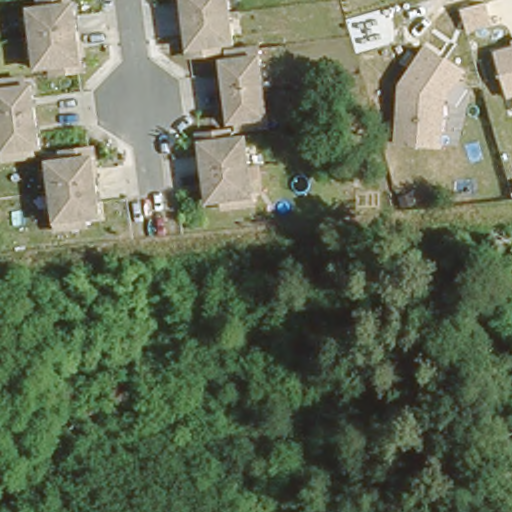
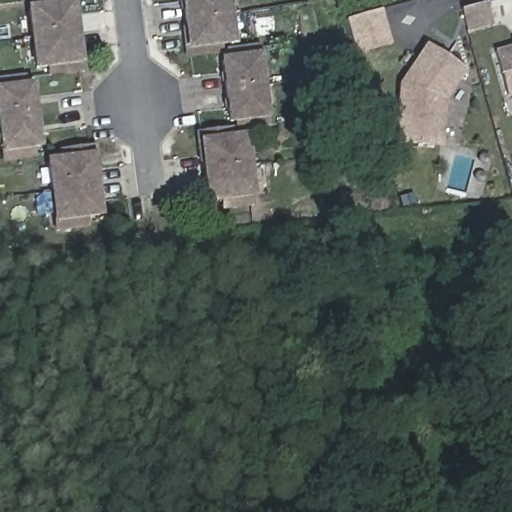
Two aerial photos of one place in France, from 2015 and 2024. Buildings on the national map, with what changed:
unchanged [(53,71),(51,64),(36,66),(29,7),(39,6),(39,0),(68,0),(69,1),(73,1),(81,68),(53,71)]
unchanged [(219,44),(220,53),(190,56),(183,0),(228,0),(233,42),(219,44)]
unchanged [(496,27),(469,34),(462,9),(488,1),(496,27)]
new [(379,13),(388,47),(357,56),(347,21),(379,13)]
unchanged [(448,103),(444,148),(396,146),(398,88),(427,44),(468,71),(448,103)]
unchanged [(509,96),(497,51),(512,47),(512,96),(509,96)]
unchanged [(268,126),(238,130),(237,121),(230,123),(223,61),(229,60),(229,51),(258,48),(268,126)]
unchanged [(32,145),(33,153),(7,156),(4,157),(0,133),(0,79),(23,75),(24,84),(31,83),(39,144),(32,145)]
unchanged [(254,204),(224,208),(223,200),(209,202),(200,135),(230,131),(231,140),(246,138),(254,204)]
unchanged [(100,212),(85,214),(86,223),(56,226),(48,160),(63,158),(61,150),(91,146),(100,212)]

